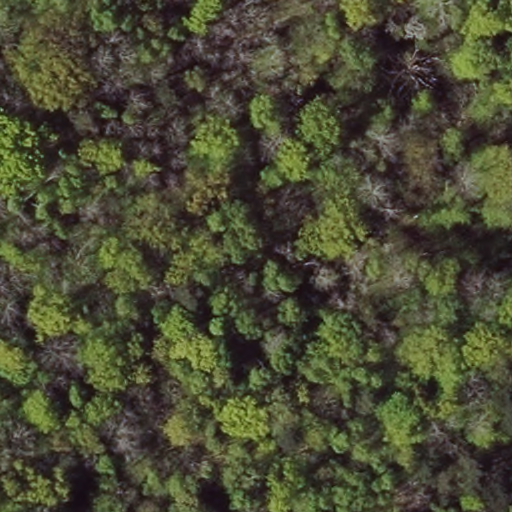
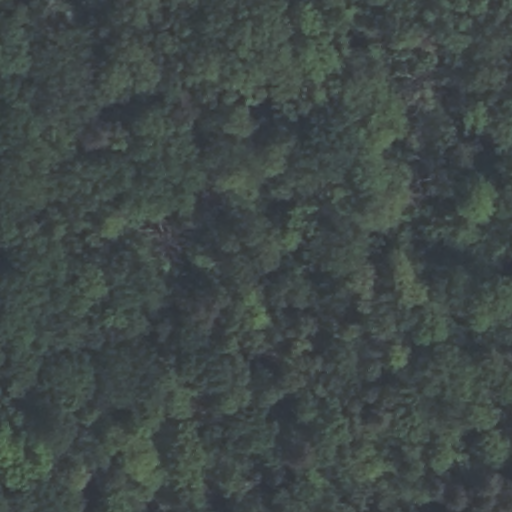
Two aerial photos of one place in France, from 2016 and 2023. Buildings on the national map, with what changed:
unchanged [(194,473),(213,462),(222,477),(203,487),(194,473)]

